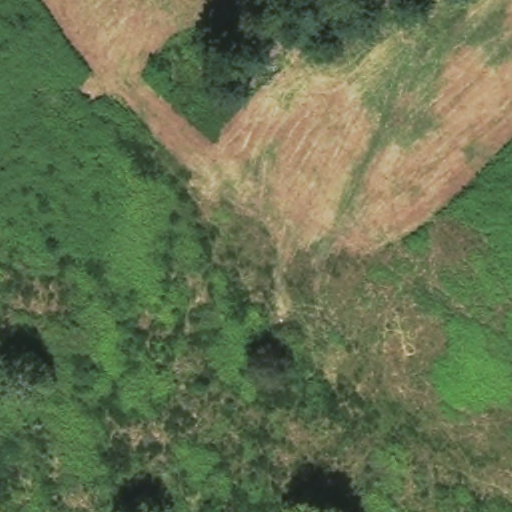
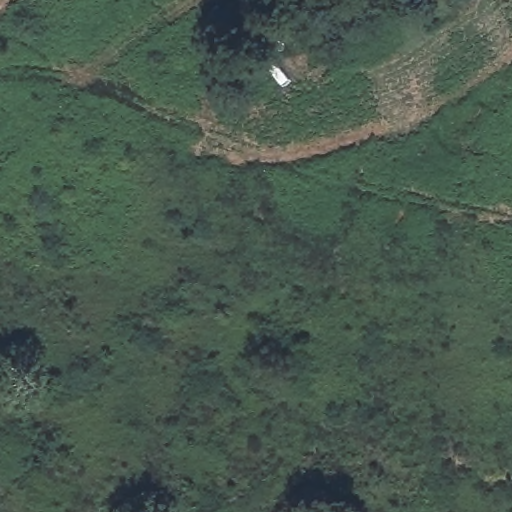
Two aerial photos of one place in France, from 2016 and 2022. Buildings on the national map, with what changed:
[]

